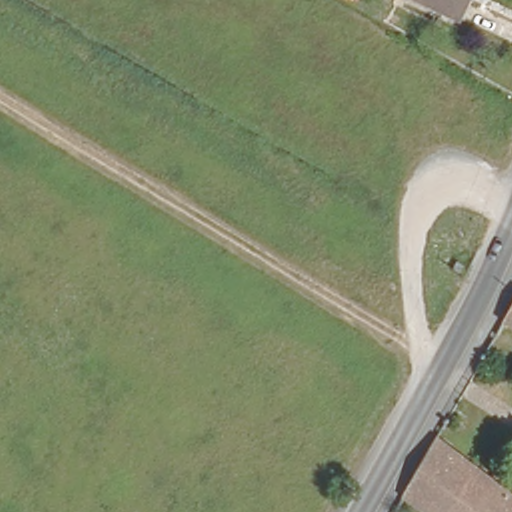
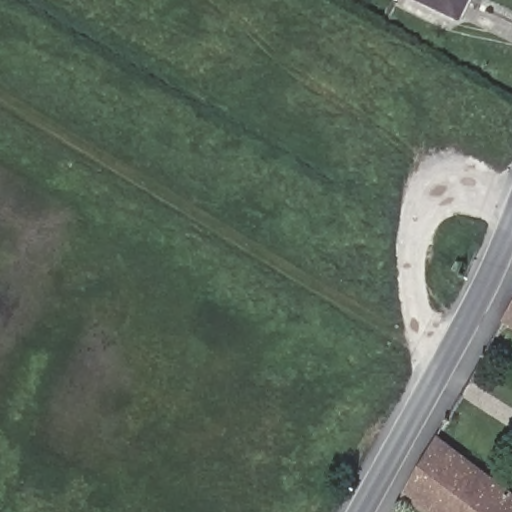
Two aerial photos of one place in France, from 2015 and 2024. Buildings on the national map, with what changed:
unchanged [(426,0),(469,0),(461,17),(426,0)]
unchanged [(512,303),(512,331),(500,323),(512,303)]
unchanged [(403,508),(424,472),(438,447),(512,505),(512,512),(409,512),(403,508)]

